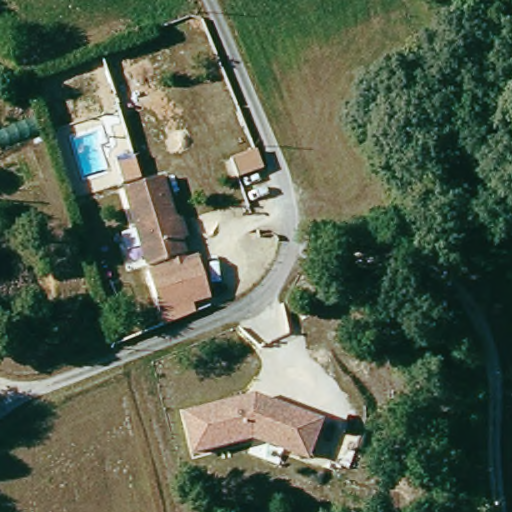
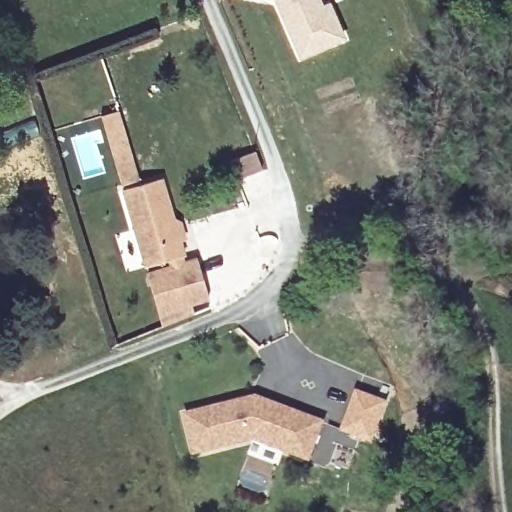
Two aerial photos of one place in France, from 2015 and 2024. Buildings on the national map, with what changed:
new [(328,1),(343,35),(300,53),(277,0),(331,0),(328,1)]
unchanged [(122,185),(100,115),(118,109),(138,180),(122,185)]
new [(255,150),(262,169),(236,179),(230,160),(255,150)]
unchanged [(164,176),(176,217),(182,220),(190,240),(183,243),(187,254),(185,255),(186,262),(200,258),(212,298),(162,315),(151,275),(174,267),(171,260),(148,266),(125,189),(164,176)]
new [(359,390),(387,401),(373,438),(345,428),(359,390)]
unchanged [(255,440),(193,457),(182,413),(255,393),(326,421),(309,461),(255,440)]

